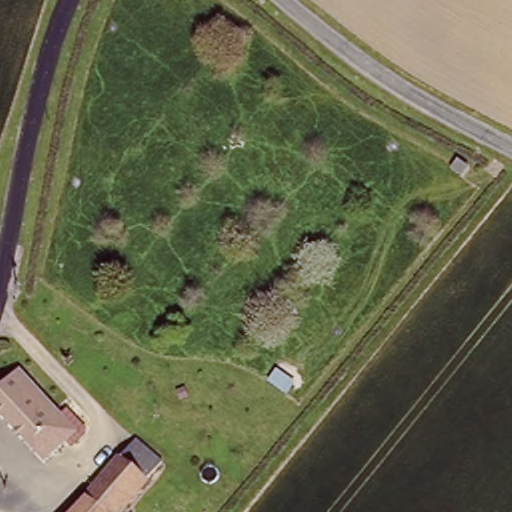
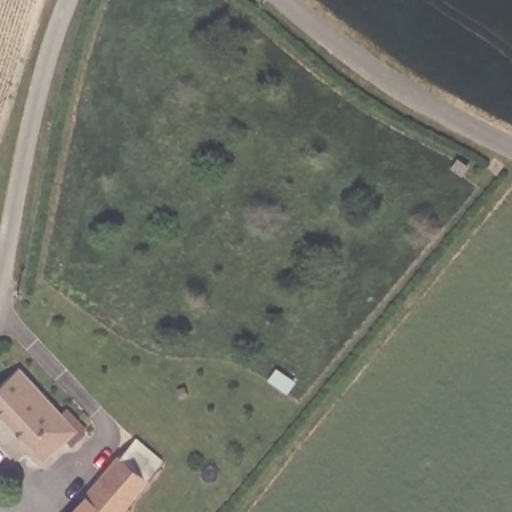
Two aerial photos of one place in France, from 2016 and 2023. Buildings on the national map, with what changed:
unchanged [(0,418),(0,385),(15,370),(58,414),(46,425),(56,435),(35,455),(0,418)]
unchanged [(74,496),(83,486),(85,488),(136,434),(164,461),(126,502),(133,507),(129,512),(70,512),(80,501),(74,496)]

